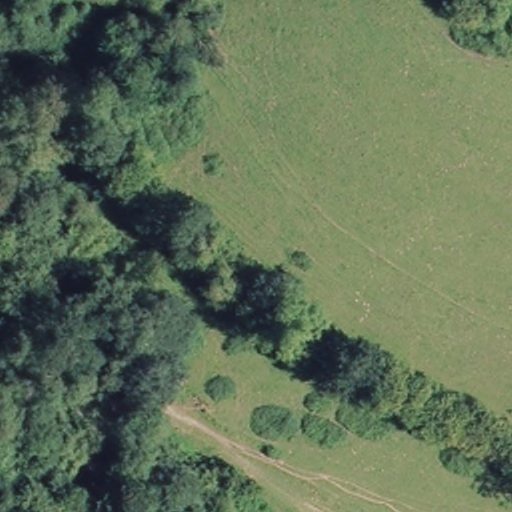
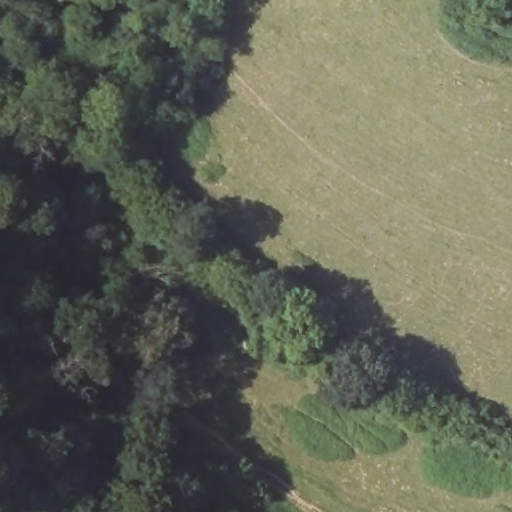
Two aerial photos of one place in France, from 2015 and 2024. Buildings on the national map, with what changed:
unchanged [(499,0),(508,0),(505,4),(499,0)]

